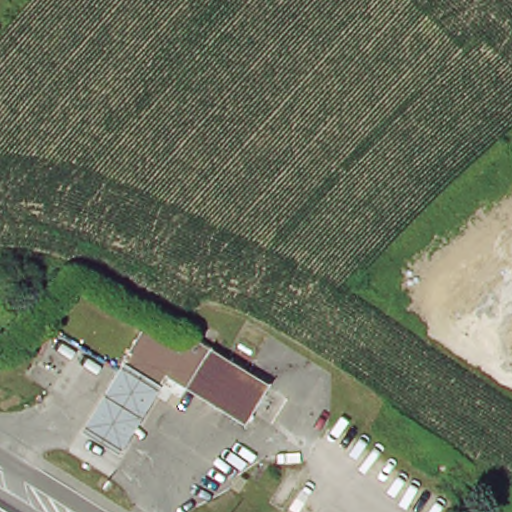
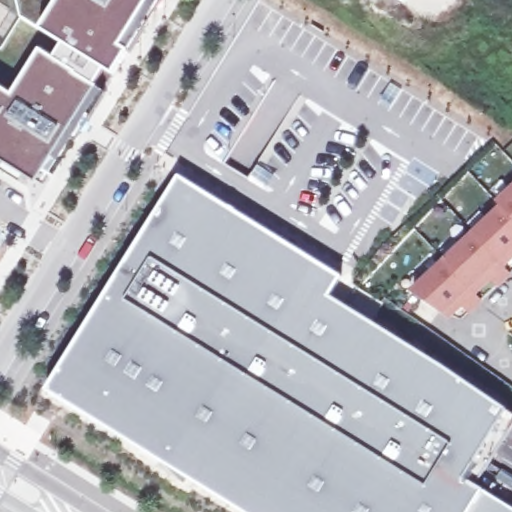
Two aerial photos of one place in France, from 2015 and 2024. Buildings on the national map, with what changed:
new [(20,0),(150,0),(121,47),(127,52),(111,74),(101,92),(97,89),(45,171),(29,171),(21,183),(0,169),(0,5),(12,12),(20,0)]
new [(338,276),(326,294),(512,414),(512,423),(475,485),(512,509),(512,512),(245,512),(44,387),(177,174),(338,276)]
new [(409,291),(498,205),(496,202),(512,187),(512,260),(505,268),(512,276),(497,288),(491,281),(476,295),(482,302),(467,315),(462,307),(449,320),(409,291)]
demolished [(234,413),(172,381),(167,392),(159,387),(122,367),(141,333),(184,358),(194,340),(267,381),(249,420),(234,413)]

